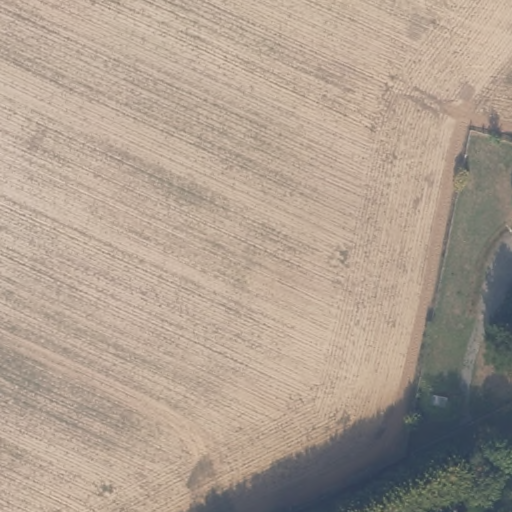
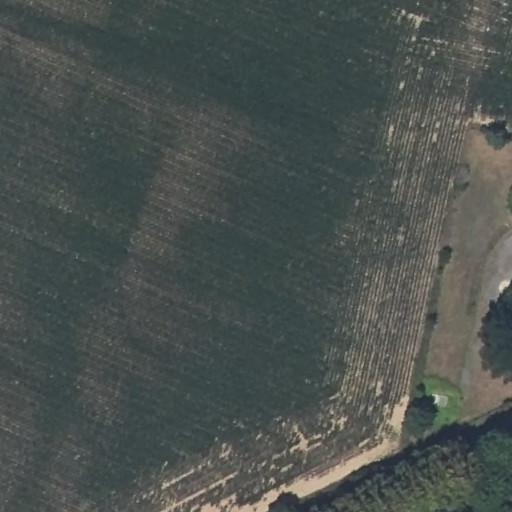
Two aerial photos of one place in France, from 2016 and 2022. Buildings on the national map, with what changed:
[]

